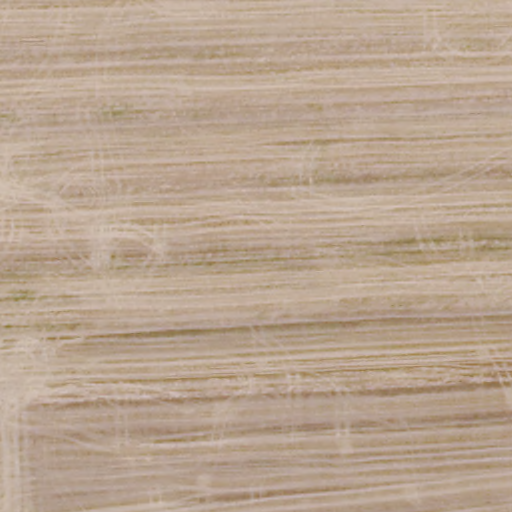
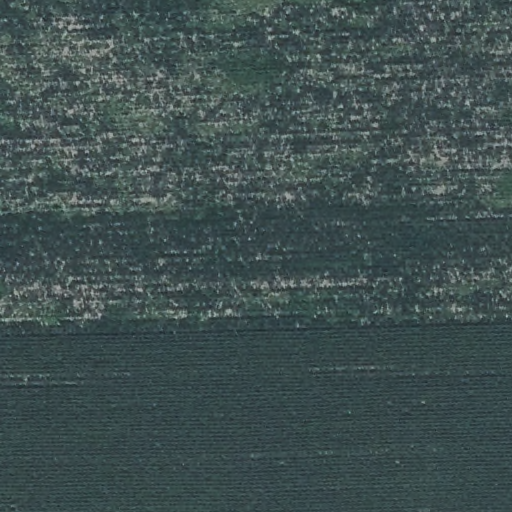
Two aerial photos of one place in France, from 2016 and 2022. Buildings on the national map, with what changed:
[]

